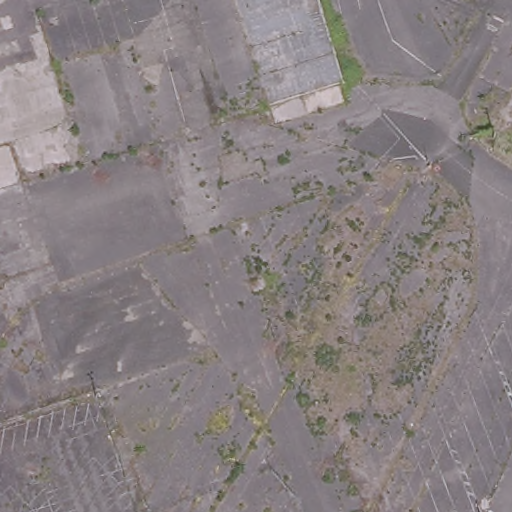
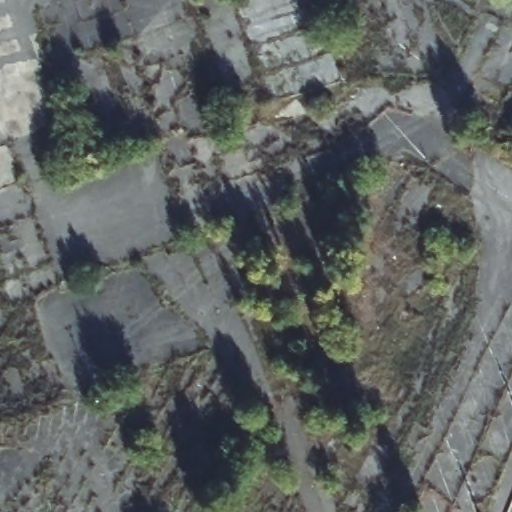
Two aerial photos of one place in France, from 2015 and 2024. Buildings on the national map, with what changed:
[]

